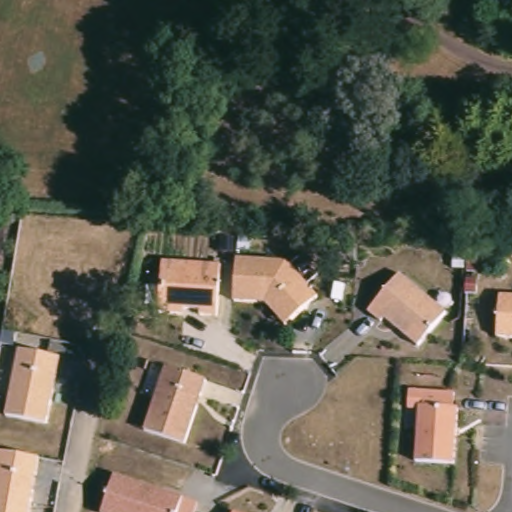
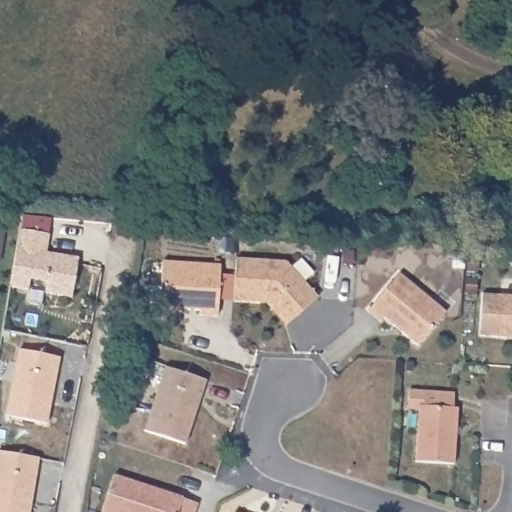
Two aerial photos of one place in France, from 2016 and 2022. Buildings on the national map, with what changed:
new [(4,229),(0,255),(0,228),(4,229)]
new [(19,229),(48,234),(45,252),(78,258),(71,297),(44,292),(46,281),(30,278),(28,290),(10,287),(19,229)]
unchanged [(287,259),(318,297),(285,324),(266,300),(236,299),(236,257),(287,259)]
unchanged [(231,271),(228,322),(211,322),(211,316),(188,315),(188,320),(171,320),(174,267),(231,271)]
unchanged [(410,278),(457,317),(430,350),(395,322),(392,326),(379,316),(410,278)]
unchanged [(511,298),(512,298),(512,340),(508,340),(511,298)]
unchanged [(57,357),(43,422),(2,414),(16,348),(57,357)]
unchanged [(178,372),(218,384),(198,448),(158,436),(178,372)]
unchanged [(458,406),(456,462),(417,460),(419,409),(409,408),(409,388),(455,391),(454,406),(458,406)]
unchanged [(35,456),(25,512),(0,512),(0,450),(35,456)]
unchanged [(183,496),(198,502),(195,512),(102,512),(114,473),(183,496)]

